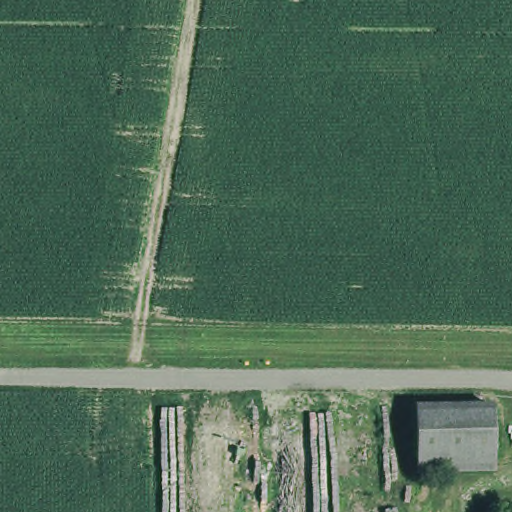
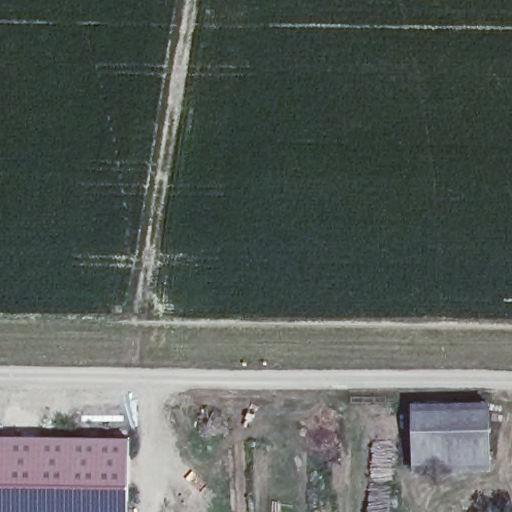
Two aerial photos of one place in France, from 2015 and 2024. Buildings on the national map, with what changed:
unchanged [(407,412),(483,410),(485,462),(410,465),(407,412)]
new [(130,433),(130,512),(0,512),(0,431),(130,433)]

